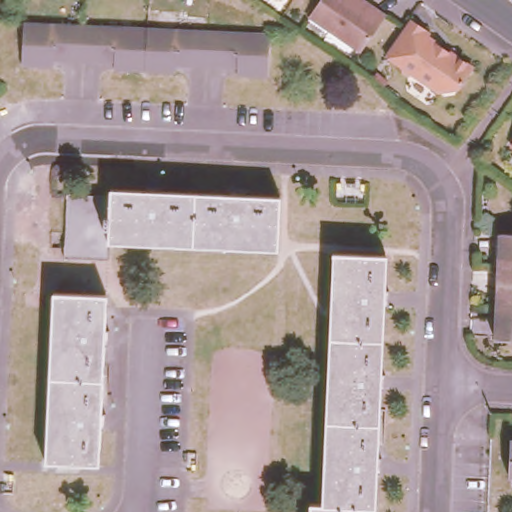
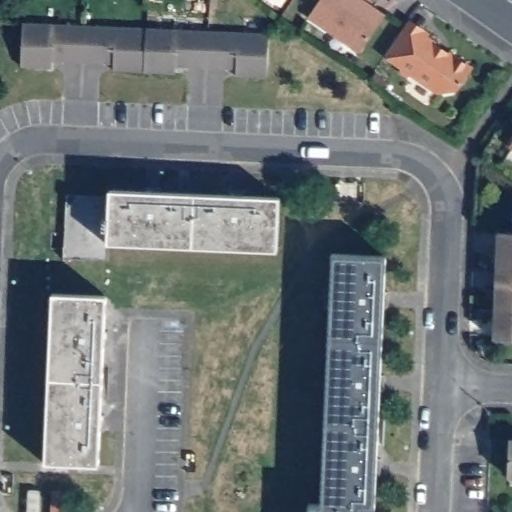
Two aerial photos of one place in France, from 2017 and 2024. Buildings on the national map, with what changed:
unchanged [(358,48),(307,12),(315,0),(368,0),(383,11),(358,48)]
unchanged [(417,31),(420,26),(435,37),(433,39),(443,46),(445,45),(470,62),(454,84),(437,86),(410,67),(404,69),(397,64),(397,59),(382,49),(402,20),(417,31)]
unchanged [(235,77),(235,67),(175,66),(175,75),(113,71),(113,62),(52,60),(52,68),(22,66),(23,24),(268,33),(267,79),(235,77)]
unchanged [(508,142),(512,138),(512,145),(508,142)]
unchanged [(62,189),(105,191),(106,183),(140,184),(140,179),(156,180),(157,185),(223,187),(224,182),(240,184),(240,188),(274,190),(272,244),(103,235),(102,253),(61,252),(62,189)]
unchanged [(497,232),(512,233),(512,270),(495,270),(497,232)]
unchanged [(309,503),(322,503),(336,251),(387,255),(387,285),(392,286),(390,304),(385,304),(382,372),(385,372),(385,388),(380,388),(378,453),(381,453),(381,470),(377,470),(375,507),(363,506),(363,512),(309,512),(309,503)]
unchanged [(495,270),(512,270),(512,305),(493,305),(495,270)]
unchanged [(51,292),(105,294),(103,328),(109,328),(108,346),(102,345),(99,410),(103,411),(103,427),(98,426),(96,460),(45,459),(51,292)]
unchanged [(492,340),(493,305),(512,305),(512,341),(492,340)]
unchanged [(506,472),(508,432),(512,433),(512,473),(506,472)]

